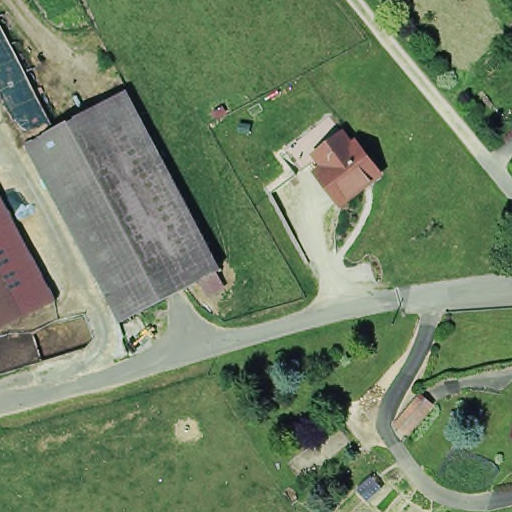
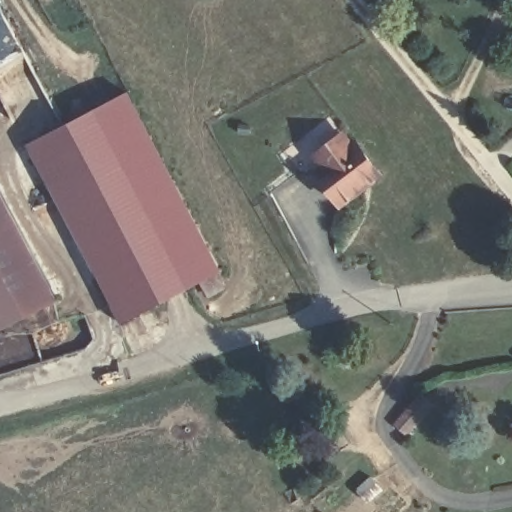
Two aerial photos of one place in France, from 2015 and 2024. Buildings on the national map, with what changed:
unchanged [(128,89),(221,267),(152,304),(57,125),(128,89)]
unchanged [(23,143),(27,141),(57,125),(152,304),(118,322),(23,143)]
unchanged [(350,144),(353,141),(377,173),(337,203),(313,170),(304,158),(318,148),(340,131),(350,144)]
unchanged [(56,297),(21,316),(0,276),(0,191),(56,297)]
unchanged [(21,316),(0,327),(0,276),(21,316)]
unchanged [(435,411),(410,441),(399,431),(425,401),(435,411)]

